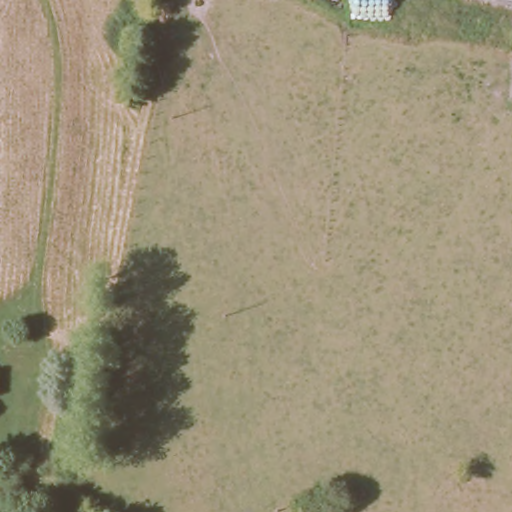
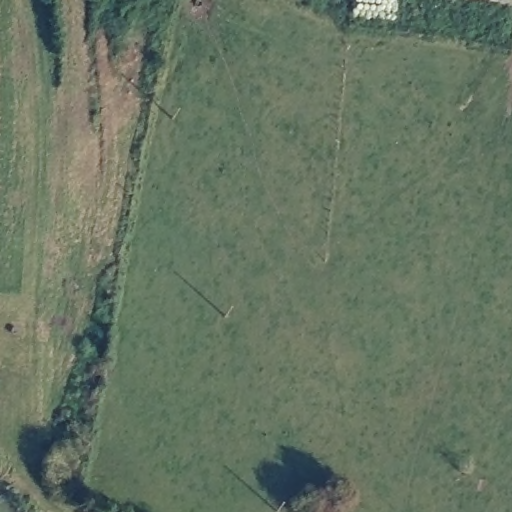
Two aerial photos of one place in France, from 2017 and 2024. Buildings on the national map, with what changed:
unchanged [(512,0),(512,2),(503,0),(512,0)]

